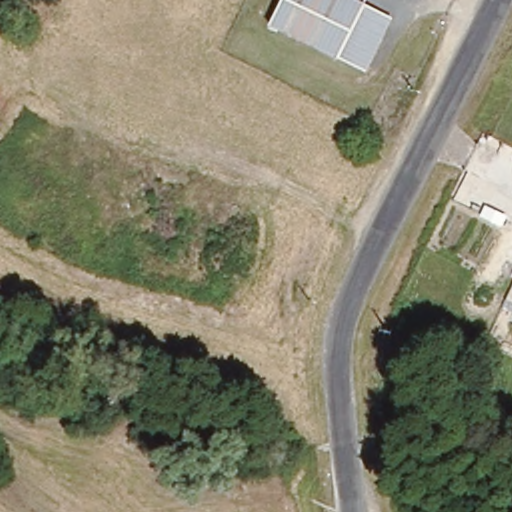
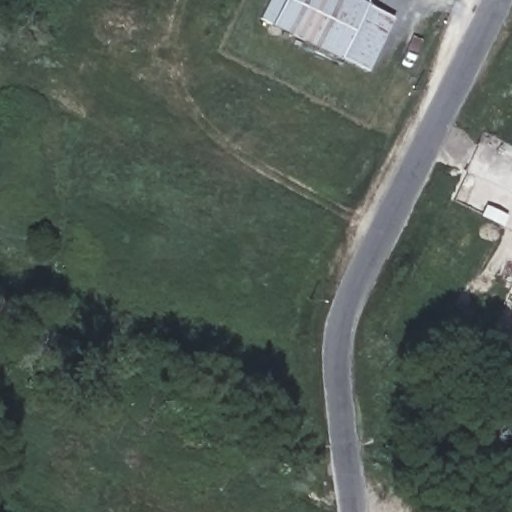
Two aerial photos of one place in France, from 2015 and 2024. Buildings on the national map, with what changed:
unchanged [(273,22),(283,0),(353,0),(378,11),(386,35),(370,68),(273,22)]

